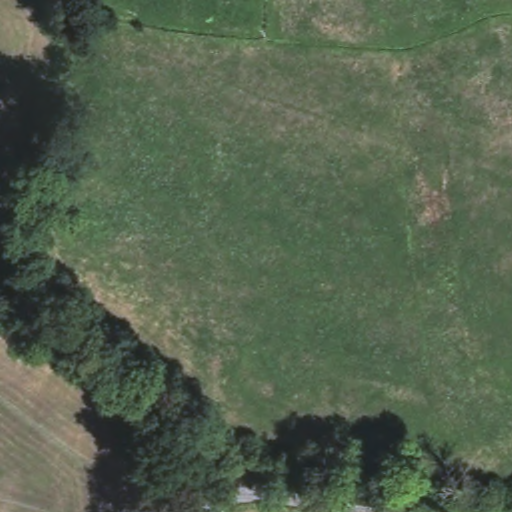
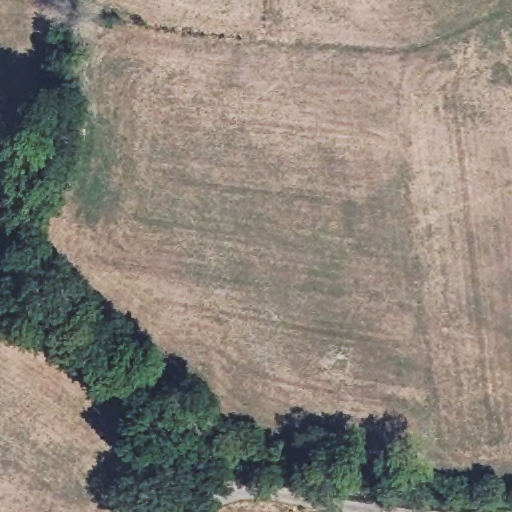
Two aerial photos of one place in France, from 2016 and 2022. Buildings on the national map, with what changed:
[]

